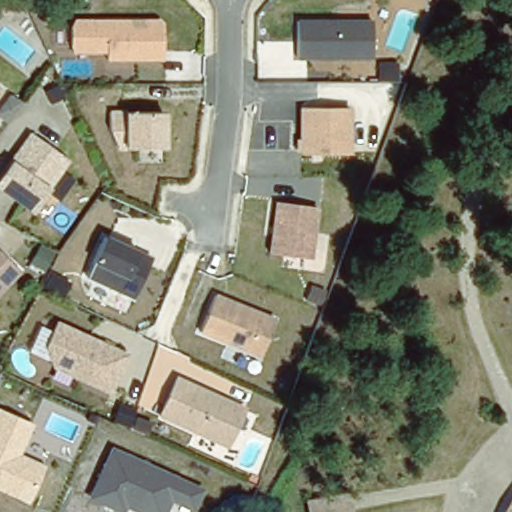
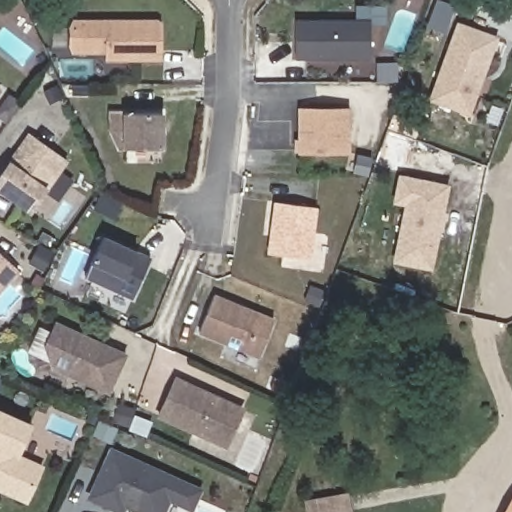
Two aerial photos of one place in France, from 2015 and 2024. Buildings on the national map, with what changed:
unchanged [(374,57),(298,58),(299,19),(371,18),(374,57)]
unchanged [(163,22),(163,63),(107,62),(106,54),(72,54),(73,21),(163,22)]
new [(456,21),(500,36),(495,49),(493,48),(470,117),(429,100),(456,21)]
unchanged [(1,94),(0,95),(0,94),(1,94)]
unchanged [(353,153),(299,155),(299,106),(353,106),(353,153)]
unchanged [(164,148),(119,146),(110,127),(111,110),(163,111),(164,148)]
unchanged [(31,137),(68,163),(32,213),(0,190),(0,181),(31,137)]
new [(393,263),(404,205),(392,203),(399,173),(451,185),(433,271),(393,263)]
unchanged [(317,208),(311,261),(269,255),(275,203),(317,208)]
unchanged [(133,300),(85,279),(105,236),(153,258),(133,300)]
unchanged [(17,269),(0,289),(0,255),(17,269)]
unchanged [(260,358),(199,333),(217,294),(278,317),(260,358)]
unchanged [(112,395),(55,371),(43,346),(57,320),(131,354),(112,395)]
unchanged [(230,451),(157,416),(177,375),(247,408),(230,451)]
unchanged [(29,504),(0,492),(0,412),(33,425),(22,453),(47,464),(29,504)]
unchanged [(169,502),(164,512),(132,512),(124,508),(121,512),(117,512),(89,497),(111,448),(203,489),(192,512),(169,502)]
unchanged [(512,512),(506,512),(512,500),(512,512)]
unchanged [(350,512),(310,512),(309,509),(348,501),(350,512)]

